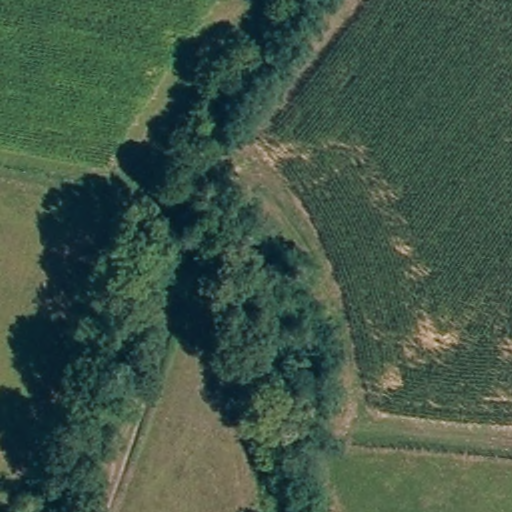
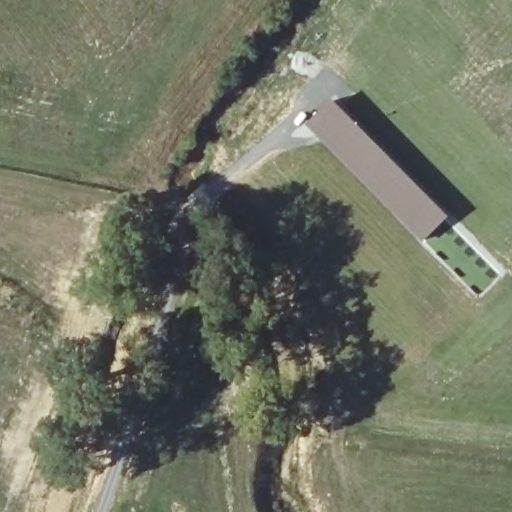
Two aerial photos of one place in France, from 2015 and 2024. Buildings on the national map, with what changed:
new [(331,99),(449,217),(422,242),(306,124),(331,99)]

